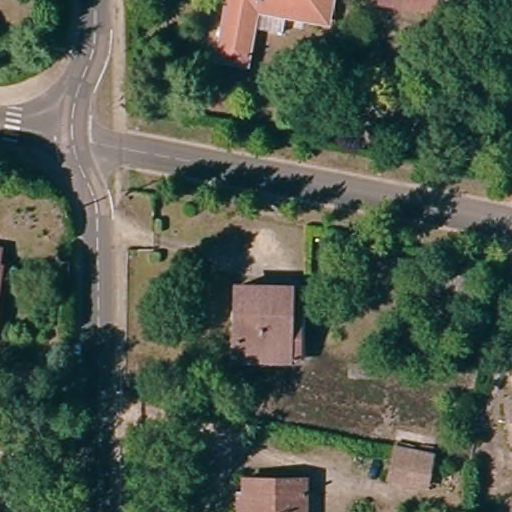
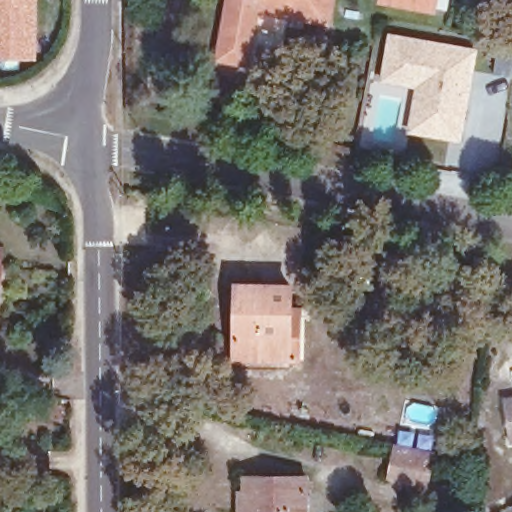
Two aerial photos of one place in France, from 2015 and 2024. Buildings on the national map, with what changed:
new [(36,60),(0,60),(0,0),(38,0),(36,60)]
unchanged [(255,2),(243,56),(215,52),(226,0),(324,0),(321,15),(255,2)]
unchanged [(384,0),(429,0),(428,10),(384,1),(384,0)]
new [(407,133),(414,89),(380,82),(388,33),(477,49),(461,142),(407,133)]
unchanged [(232,290),(284,291),(284,362),(229,361),(232,290)]
unchanged [(512,400),(512,441),(509,441),(504,401),(512,400)]
unchanged [(424,483),(389,476),(395,445),(431,452),(424,483)]
unchanged [(240,496),(240,478),(302,479),(302,496),(295,496),(295,512),(248,512),(248,496),(240,496)]

